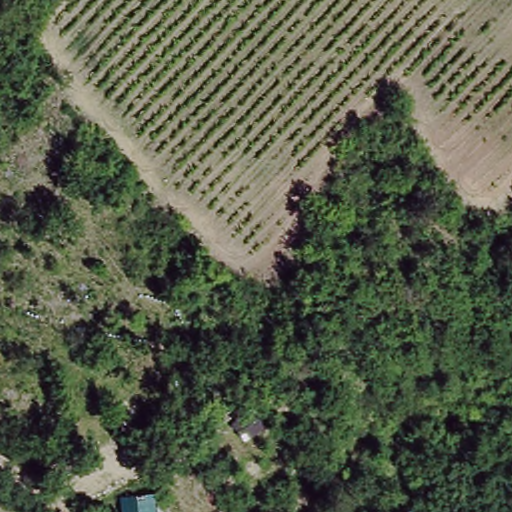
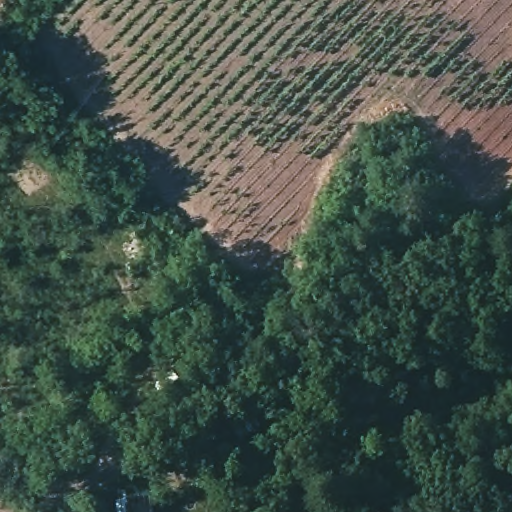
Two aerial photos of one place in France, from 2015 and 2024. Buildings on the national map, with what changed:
unchanged [(123,512),(121,497),(152,493),(155,512),(123,512)]

